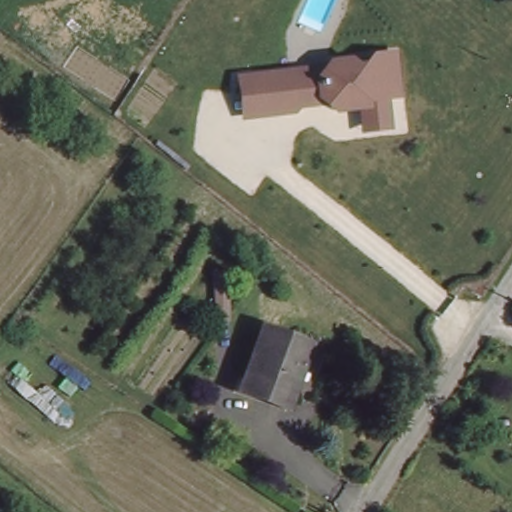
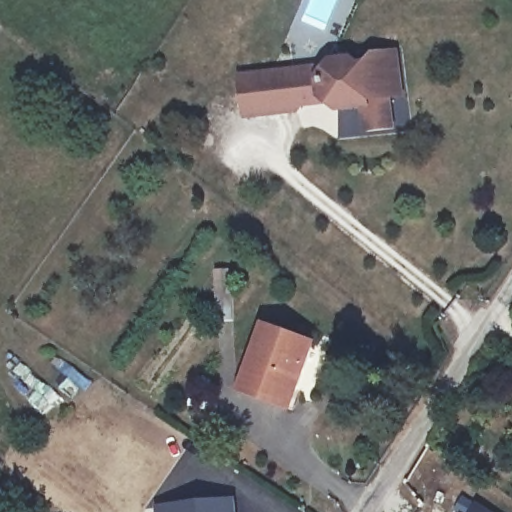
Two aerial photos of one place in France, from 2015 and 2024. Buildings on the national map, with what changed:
unchanged [(406,97),(394,98),(399,129),(364,133),(361,109),(243,120),(236,72),(400,49),(406,97)]
unchanged [(238,388),(261,329),(311,349),(299,383),(291,409),(283,406),(238,388)]
new [(491,512),(455,512),(453,511),(462,494),(491,512)]
new [(238,512),(155,512),(154,502),(235,496),(238,512)]

